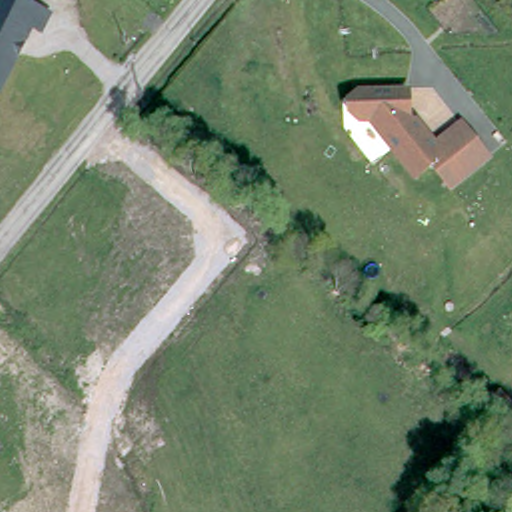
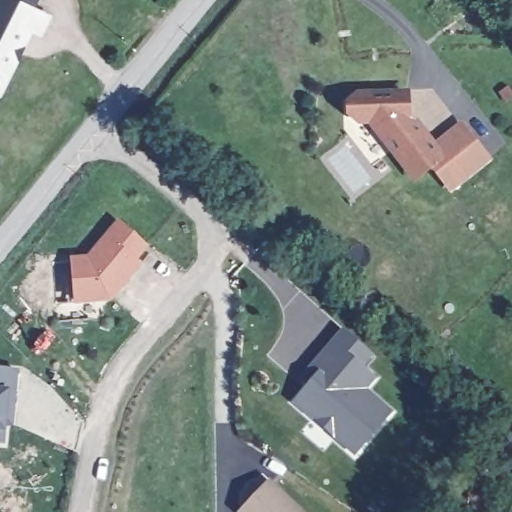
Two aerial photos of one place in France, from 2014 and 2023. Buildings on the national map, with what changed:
unchanged [(43,38),(33,32),(0,99),(0,0),(23,0),(54,15),(43,38)]
unchanged [(416,177),(370,122),(357,122),(348,115),(347,104),(355,96),(405,93),(406,119),(410,118),(434,147),(461,125),(487,157),(451,187),(432,165),(416,177)]
new [(149,246),(137,260),(142,264),(110,301),(72,305),(70,256),(88,255),(116,220),(149,246)]
new [(374,353),(364,365),(377,377),(369,388),(394,409),(355,456),(292,404),(317,372),(310,366),(341,327),(374,353)]
new [(5,427),(4,445),(0,445),(0,367),(18,368),(13,428),(5,427)]
unchanged [(479,387),(490,397),(482,406),(470,396),(479,387)]
new [(306,512),(238,512),(270,478),(306,512)]

